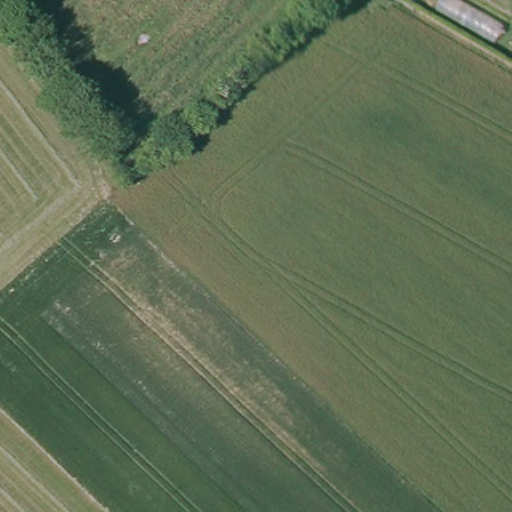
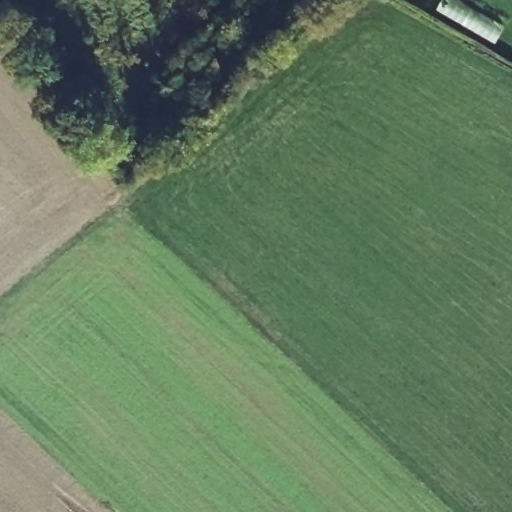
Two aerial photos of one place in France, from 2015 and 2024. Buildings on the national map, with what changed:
unchanged [(493,45),(435,12),(442,0),(463,0),(507,24),(493,45)]

